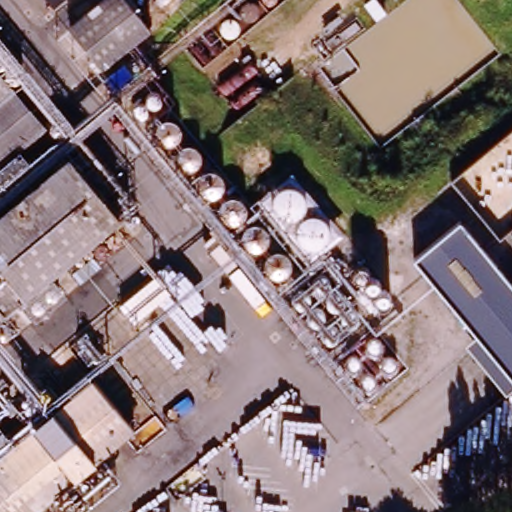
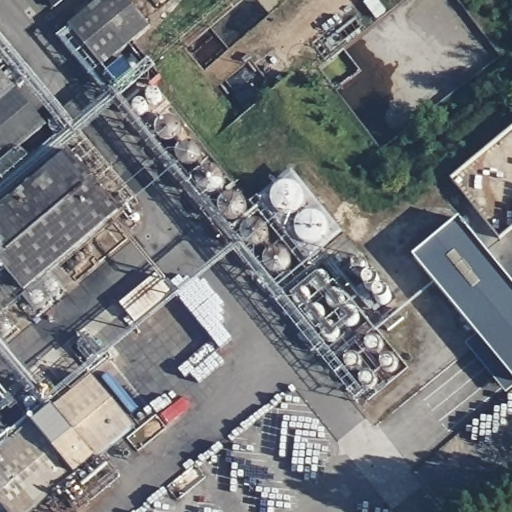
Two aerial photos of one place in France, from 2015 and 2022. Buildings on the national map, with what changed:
unchanged [(50,6),(45,0),(58,0),(50,6)]
unchanged [(94,0),(128,0),(144,20),(97,57),(68,20),(94,0)]
unchanged [(239,0),(284,0),(210,60),(192,38),(239,0)]
unchanged [(127,45),(143,67),(119,86),(102,64),(127,45)]
unchanged [(272,83),(245,104),(225,79),(252,58),(272,83)]
unchanged [(3,84),(0,87),(0,80),(3,84)]
unchanged [(3,84),(21,105),(46,136),(48,138),(25,157),(23,155),(13,141),(0,152),(0,87),(3,84)]
unchanged [(151,102),(148,104),(145,106),(140,105),(137,104),(135,101),(134,97),(135,94),(137,90),(140,89),(143,88),(146,88),(149,90),(151,91),(153,95),(152,99),(151,102)]
unchanged [(130,113),(126,113),(123,112),(122,108),(122,105),(125,102),(128,102),(132,104),(133,107),(132,110),(130,113)]
unchanged [(126,237),(0,339),(0,212),(63,158),(126,237)]
unchanged [(512,381),(503,388),(465,342),(479,332),(413,255),(457,220),(512,284),(512,381)]
unchanged [(157,269),(173,290),(135,320),(120,302),(157,269)]
unchanged [(72,346),(87,334),(107,359),(97,368),(93,372),(72,346)]
unchanged [(67,475),(22,512),(9,512),(0,500),(0,455),(95,379),(131,424),(67,475)]

